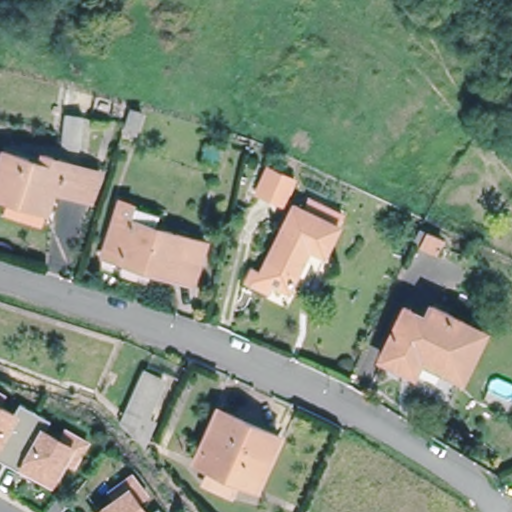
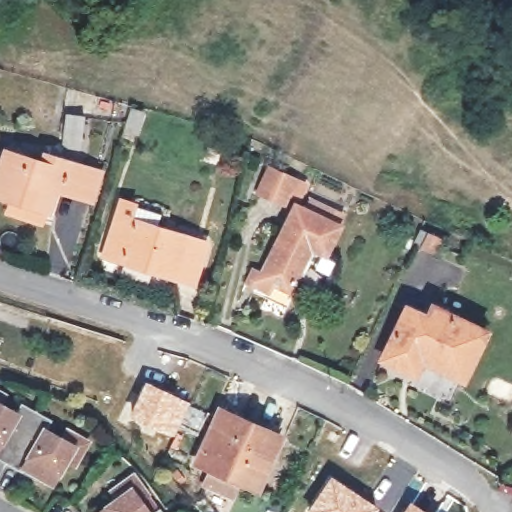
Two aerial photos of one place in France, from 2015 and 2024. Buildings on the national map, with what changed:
unchanged [(142,113),(135,134),(123,130),(129,110),(142,113)]
unchanged [(84,116),(81,149),(63,146),(67,115),(84,116)]
unchanged [(7,212),(11,199),(0,196),(0,170),(5,152),(42,164),(44,155),(70,164),(99,172),(90,200),(62,190),(54,188),(47,210),(45,210),(41,224),(7,212)]
unchanged [(294,174),(283,202),(259,193),(271,164),(294,174)]
unchanged [(155,212),(150,227),(202,244),(190,283),(99,255),(116,200),(155,212)]
unchanged [(251,270),(261,274),(294,204),(303,208),(306,202),(330,213),(343,220),(338,230),(325,255),(311,248),(290,292),(272,283),(268,293),(255,286),(245,282),(251,270)]
unchanged [(442,240),(436,254),(413,243),(419,229),(442,240)]
unchanged [(400,369),(378,358),(401,308),(422,317),(427,307),(479,332),(457,378),(416,359),(409,373),(400,369)]
demolished [(134,436),(122,425),(145,370),(161,377),(143,417),(135,437),(134,436)]
new [(146,385),(188,405),(175,433),(133,413),(146,385)]
unchanged [(87,440),(74,465),(64,459),(52,481),(25,466),(22,471),(0,459),(0,392),(6,395),(0,405),(14,412),(20,401),(51,418),(45,430),(60,438),(65,428),(87,440)]
unchanged [(206,484),(212,470),(197,463),(220,410),(280,436),(256,490),(239,481),(233,495),(206,484)]
unchanged [(118,498),(110,488),(132,472),(148,493),(139,500),(148,512),(100,512),(118,498)]
new [(330,478),(373,507),(370,512),(311,512),(309,511),(330,478)]
unchanged [(159,506),(164,512),(152,512),(159,506)]
new [(410,506),(419,512),(406,512),(410,506)]

